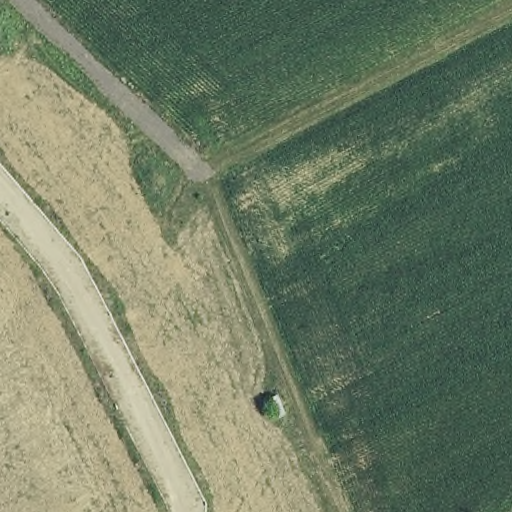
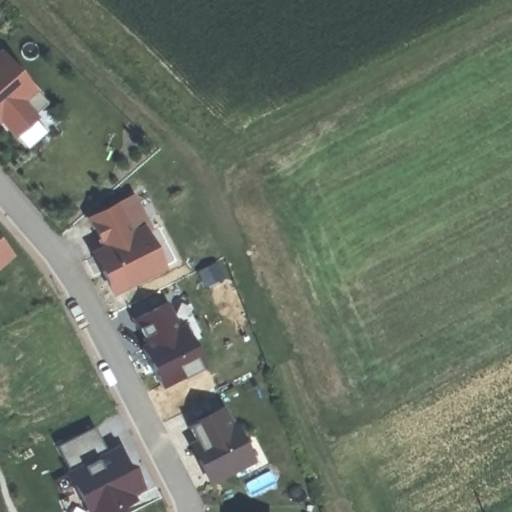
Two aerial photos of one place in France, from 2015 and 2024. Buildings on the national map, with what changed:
new [(34,116),(15,133),(0,117),(0,53),(1,52),(33,89),(32,89),(45,103),(32,114),(34,116)]
new [(86,252),(101,244),(87,217),(135,193),(152,228),(146,231),(166,269),(111,295),(86,252)]
new [(0,268),(0,241),(14,255),(0,268)]
new [(165,303),(179,330),(185,326),(204,363),(199,365),(201,369),(183,378),(181,374),(161,384),(143,348),(149,345),(135,318),(165,303)]
new [(209,485),(186,444),(196,438),(190,426),(225,407),(254,461),(209,485)]
new [(136,500),(111,512),(87,512),(67,472),(70,470),(58,446),(95,427),(107,451),(117,446),(144,489),(134,494),(136,500)]

